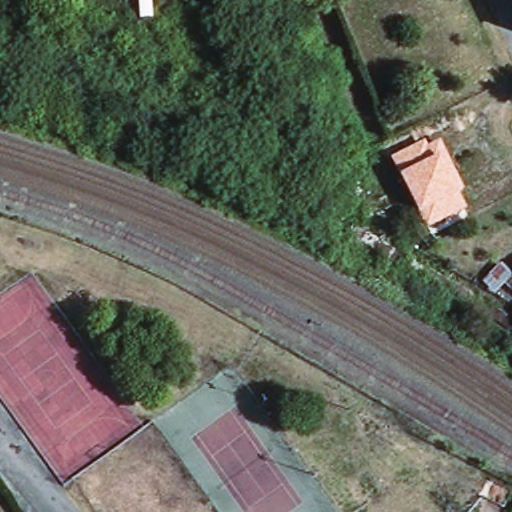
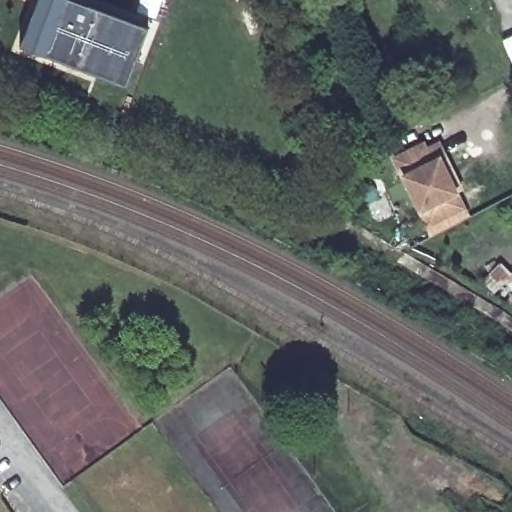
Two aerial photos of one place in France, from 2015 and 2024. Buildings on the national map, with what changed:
new [(21,48),(40,0),(74,0),(147,29),(126,85),(21,48)]
unchanged [(465,190),(459,193),(467,210),(427,230),(391,156),(425,140),(428,146),(440,140),(465,190)]
unchanged [(512,268),(512,290),(506,285),(497,294),(482,281),(502,260),(512,268)]

